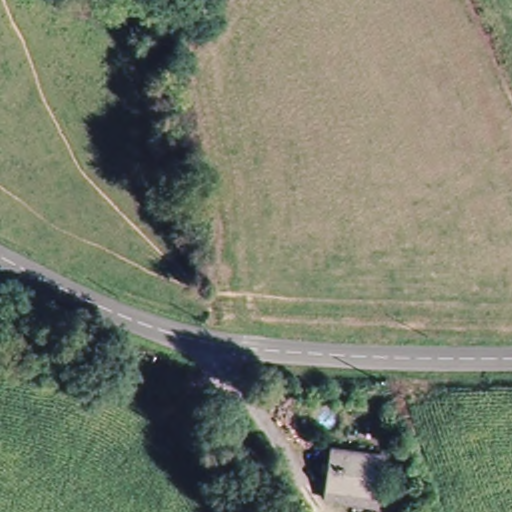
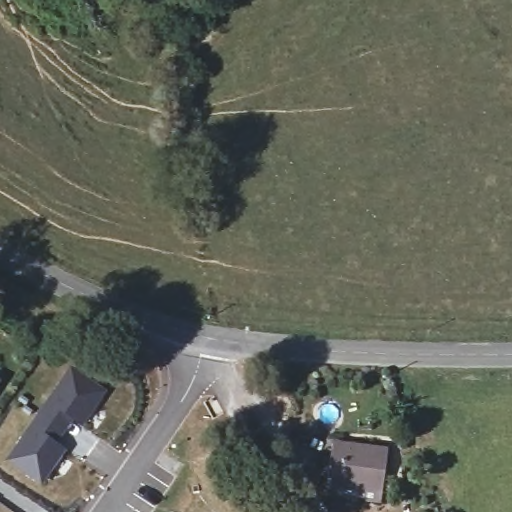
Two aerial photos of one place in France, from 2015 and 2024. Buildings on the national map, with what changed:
new [(49,402),(71,369),(104,392),(81,425),(70,416),(53,441),(64,449),(41,481),(8,459),(31,426),(49,402)]
unchanged [(332,440),(389,447),(384,490),(326,484),(332,440)]

